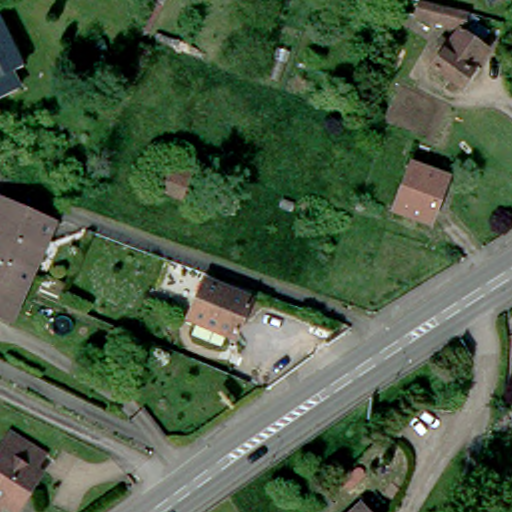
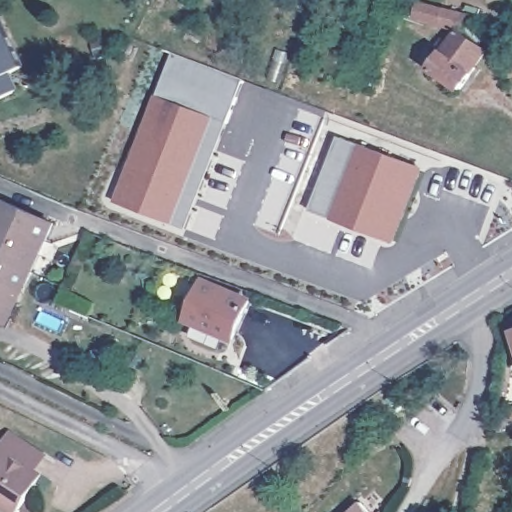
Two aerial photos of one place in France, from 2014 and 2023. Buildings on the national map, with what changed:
unchanged [(387,10),(390,0),(422,0),(440,5),(465,11),(458,29),(435,23),(387,10)]
unchanged [(0,71),(9,89),(0,94),(0,25),(19,63),(0,71)]
unchanged [(427,66),(459,31),(484,52),(466,71),(468,73),(454,89),(427,66)]
new [(115,202),(155,95),(171,51),(244,78),(187,229),(115,202)]
new [(424,168),(395,244),(332,219),(332,218),(310,210),(337,136),(359,145),(360,144),(424,168)]
demolished [(411,165),(447,180),(430,222),(394,208),(411,165)]
unchanged [(0,231),(4,223),(0,221),(0,195),(52,219),(32,266),(0,250),(0,231)]
unchanged [(25,283),(0,273),(0,250),(32,266),(25,283)]
unchanged [(0,273),(25,283),(23,286),(17,283),(6,307),(2,316),(0,315),(0,273)]
unchanged [(205,276),(251,296),(235,332),(225,328),(219,341),(194,330),(200,317),(189,312),(205,276)]
unchanged [(0,503),(0,437),(5,430),(37,452),(29,466),(35,470),(9,509),(0,503)]
unchanged [(357,497),(371,512),(342,512),(357,497)]

